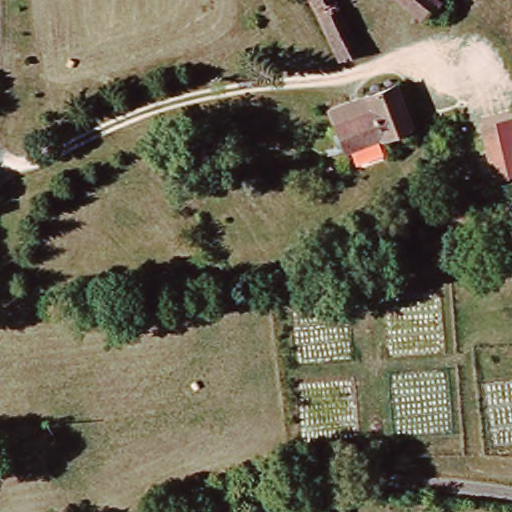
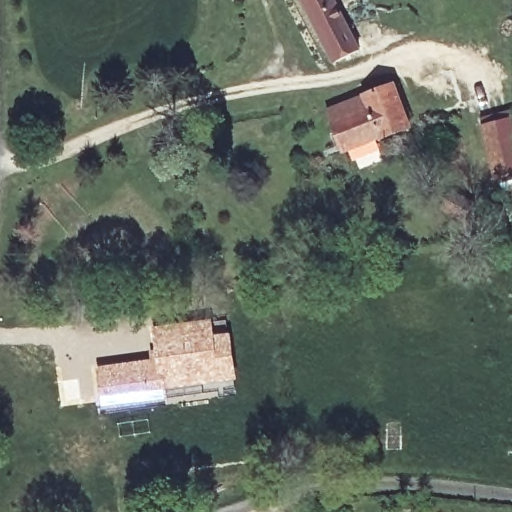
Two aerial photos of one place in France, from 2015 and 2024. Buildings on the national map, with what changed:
unchanged [(311,0),(331,0),(357,52),(342,60),(311,0)]
demolished [(440,1),(427,19),(404,0),(439,0),(440,1)]
unchanged [(370,107),(367,99),(395,89),(410,130),(345,155),(333,120),(370,107)]
new [(510,179),(512,178),(512,216),(509,217),(500,181),(495,182),(479,119),(512,110),(512,167),(507,169),(510,179)]
demolished [(512,118),(512,177),(497,182),(480,125),(512,118)]
new [(150,351),(162,350),(159,328),(207,321),(209,337),(226,335),(232,376),(200,380),(166,385),(167,396),(147,398),(102,405),(97,367),(143,362),(152,361),(150,351)]

